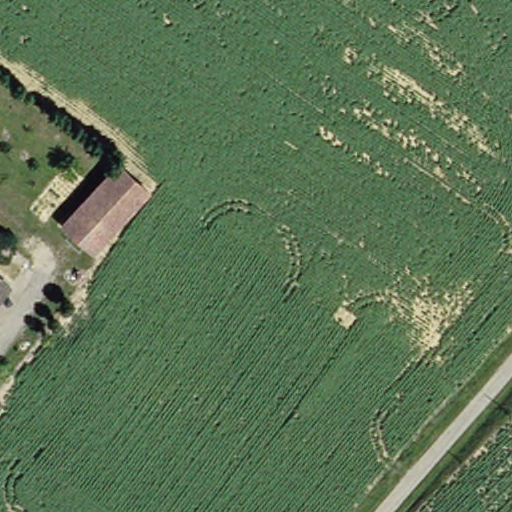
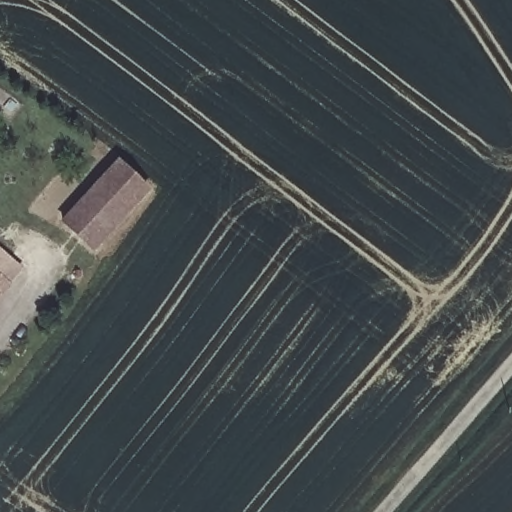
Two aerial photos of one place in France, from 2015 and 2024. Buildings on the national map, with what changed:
unchanged [(112,160),(150,193),(100,246),(62,215),(112,160)]
unchanged [(0,294),(0,245),(25,268),(0,294)]

